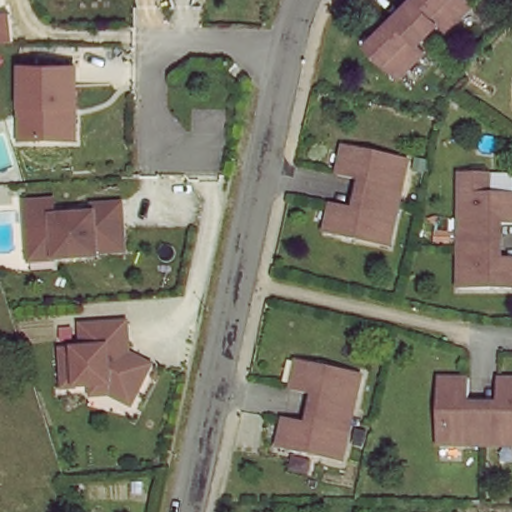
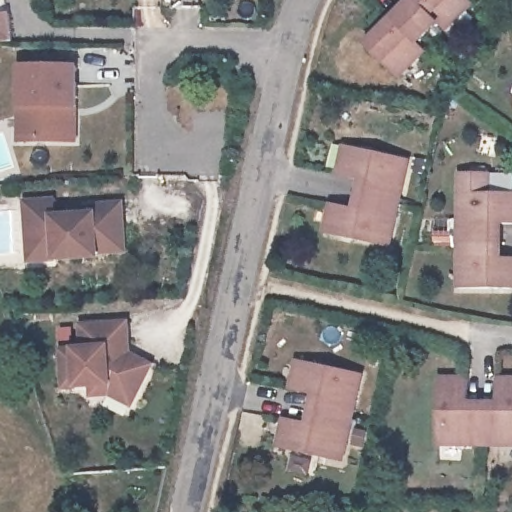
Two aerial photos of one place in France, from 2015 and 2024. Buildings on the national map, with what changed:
unchanged [(442,31),(434,23),(412,44),(420,53),(394,81),(361,50),(387,20),(390,22),(412,1),(411,0),(462,0),(468,6),(442,31)]
unchanged [(73,66),(73,140),(18,141),(18,67),(73,66)]
unchanged [(405,162),(387,250),(320,234),(327,206),(360,212),(367,184),(335,178),(342,148),(405,162)]
unchanged [(492,228),(493,261),(512,261),(512,292),(458,292),(457,175),(485,175),(485,196),(512,196),(512,227),(492,228)]
unchanged [(27,249),(24,207),(29,201),(46,200),(52,206),(52,217),(92,214),(91,205),(120,203),(123,250),(96,252),(96,256),(55,258),(28,260),(27,249)]
unchanged [(110,389),(92,390),(91,381),(63,383),(61,345),(82,344),(81,320),(127,317),(128,349),(151,360),(135,391),(130,400),(110,389)]
unchanged [(361,378),(343,465),(280,452),(285,421),(315,428),(320,399),(292,392),(298,362),(361,378)]
unchanged [(432,447),(432,381),(463,382),(463,412),(492,413),(492,382),(512,382),(512,447),(432,447)]

